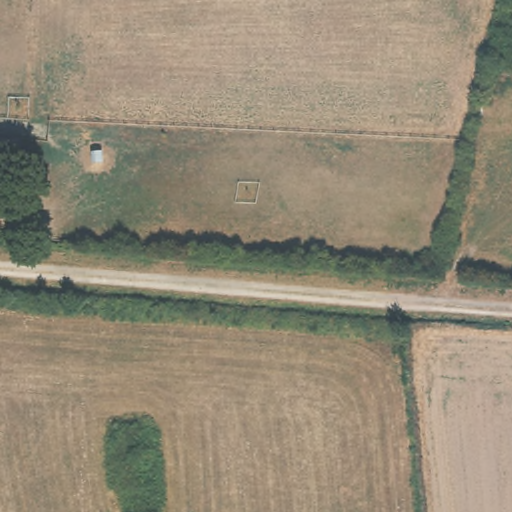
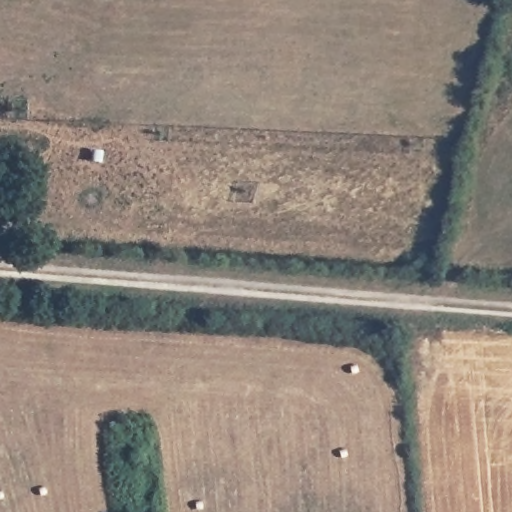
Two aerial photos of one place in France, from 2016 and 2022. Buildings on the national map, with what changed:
[]

